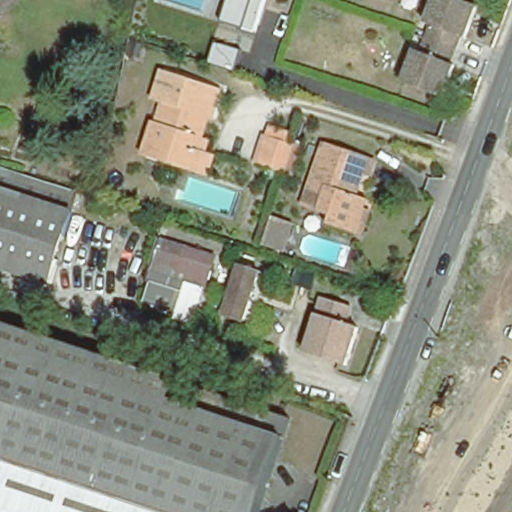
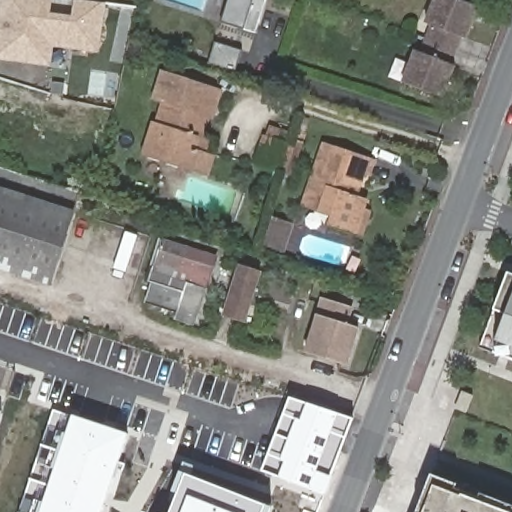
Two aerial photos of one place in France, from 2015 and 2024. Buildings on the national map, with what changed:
new [(52,65),(0,60),(0,6),(1,0),(53,0),(52,14),(72,16),(74,0),(106,4),(99,54),(54,48),(52,65)]
unchanged [(257,34),(220,22),(226,0),(267,0),(257,34)]
unchanged [(436,0),(453,0),(477,8),(467,41),(462,39),(457,52),(422,40),(436,0)]
unchanged [(457,52),(452,66),(457,67),(446,100),(406,87),(422,40),(457,52)]
new [(212,44),(240,52),(233,75),(206,66),(212,44)]
unchanged [(207,177),(199,175),(140,157),(150,121),(153,122),(159,102),(172,105),(180,76),(219,87),(210,117),(214,117),(204,152),(206,152),(214,155),(207,177)]
unchanged [(292,132),(289,142),(305,147),(295,177),(254,166),(269,126),(292,132)]
unchanged [(301,207),(317,157),(322,142),(332,145),(372,158),(367,174),(361,172),(355,188),(351,187),(348,194),(365,199),(354,235),(328,226),(331,217),(318,213),(301,207)]
unchanged [(0,268),(0,169),(80,194),(50,283),(0,268)]
new [(268,216),(290,223),(280,252),(258,244),(268,216)]
unchanged [(145,302),(155,272),(164,240),(215,257),(193,325),(175,319),(177,311),(145,302)]
unchanged [(250,321),(226,313),(241,267),(265,275),(250,321)]
new [(495,352),(481,348),(497,309),(511,273),(512,274),(512,359),(495,352)]
unchanged [(339,370),(300,356),(318,301),(348,313),(345,326),(353,330),(339,370)]
demolished [(0,323),(292,420),(261,512),(164,512),(0,458),(0,323)]
new [(325,495),(262,472),(289,396),(352,420),(325,495)]
new [(0,410),(2,411),(0,417),(0,410)]
new [(19,512),(54,410),(74,416),(128,433),(102,512),(19,512)]
new [(171,512),(187,473),(266,504),(263,512),(171,512)]
new [(512,505),(512,512),(419,512),(433,475),(512,505)]

